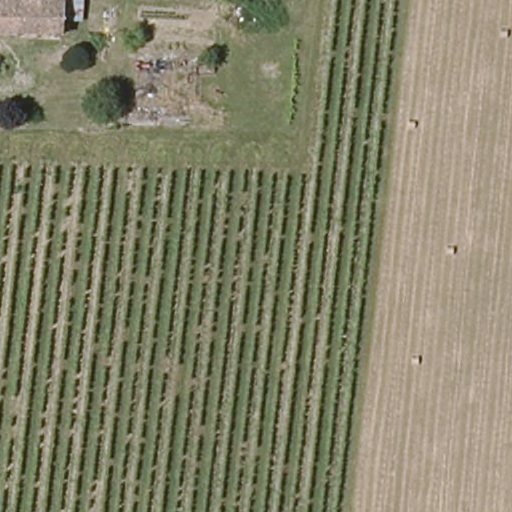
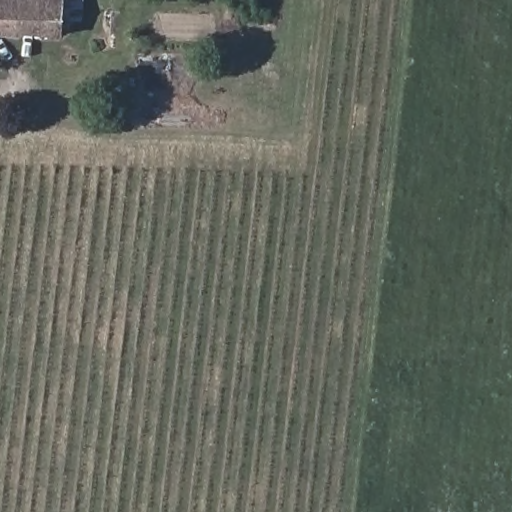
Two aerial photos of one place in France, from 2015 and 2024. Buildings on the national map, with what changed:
unchanged [(15,28),(0,27),(0,0),(16,0),(15,28)]
unchanged [(60,29),(15,28),(16,0),(60,0),(60,29)]

